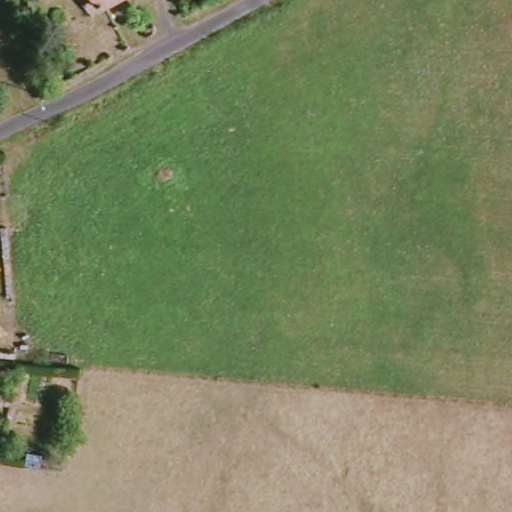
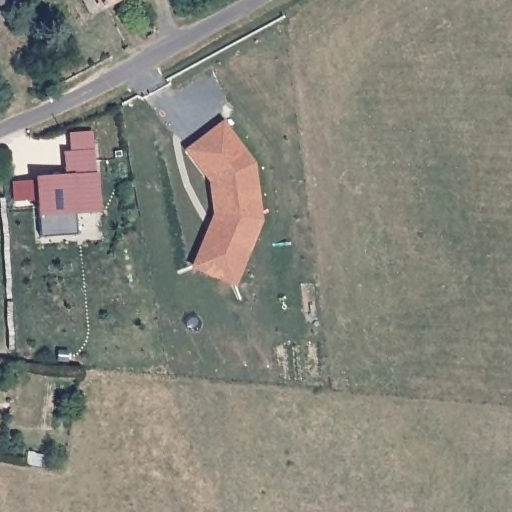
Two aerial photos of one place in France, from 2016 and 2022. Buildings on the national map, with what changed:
unchanged [(101,9),(95,0),(115,0),(101,9)]
new [(190,267),(212,213),(208,182),(185,149),(223,121),(255,163),(262,221),(234,286),(190,267)]
new [(91,133),(93,151),(70,152),(68,135),(91,133)]
new [(75,214),(77,234),(41,237),(39,216),(35,177),(66,176),(64,152),(94,149),(96,173),(98,173),(100,212),(75,214)]

